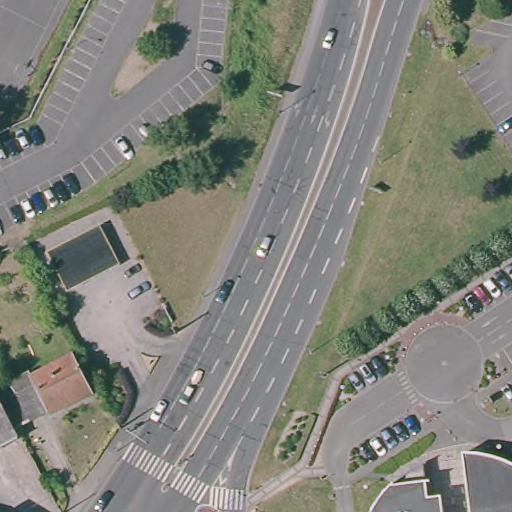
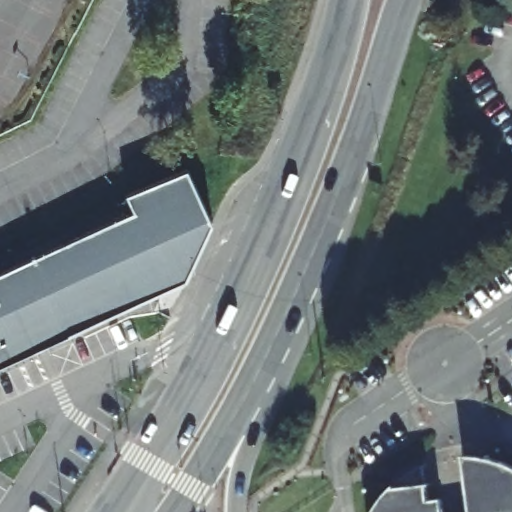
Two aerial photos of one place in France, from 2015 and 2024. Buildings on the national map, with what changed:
new [(187,279),(75,331),(0,359),(0,272),(130,210),(124,194),(185,167),(212,221),(187,279)]
demolished [(60,275),(49,254),(102,227),(113,249),(60,275)]
demolished [(122,266),(69,292),(60,275),(113,249),(122,266)]
demolished [(23,422),(13,428),(0,402),(0,381),(4,379),(10,376),(17,391),(34,383),(29,374),(68,354),(73,364),(87,392),(49,413),(47,409),(23,422)]
unchanged [(467,448),(484,448),(493,450),(505,453),(512,456),(512,512),(473,512),(467,448)]
unchanged [(374,509),(376,504),(380,498),(383,492),(388,485),(393,481),(432,476),(432,493),(446,492),(448,512),(372,512),(374,509)]

